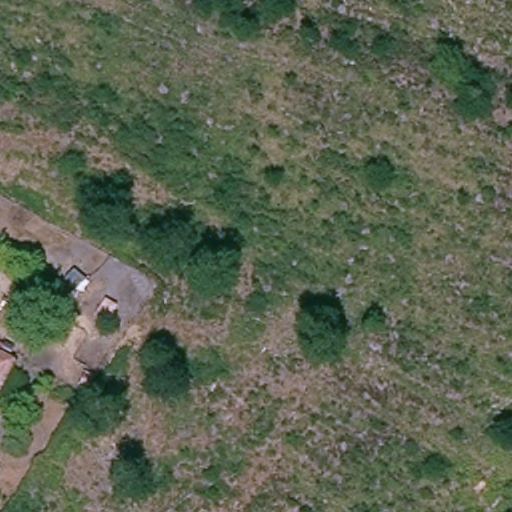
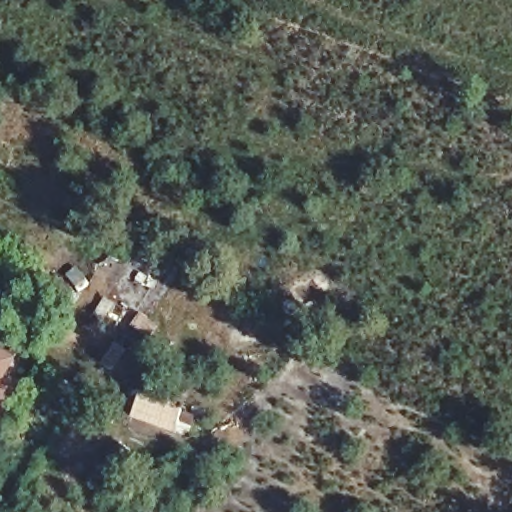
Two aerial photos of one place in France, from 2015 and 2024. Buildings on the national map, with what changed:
unchanged [(13,362),(0,386),(0,355),(13,362)]
new [(190,432),(167,431),(131,418),(140,393),(152,397),(151,400),(196,416),(190,432)]

